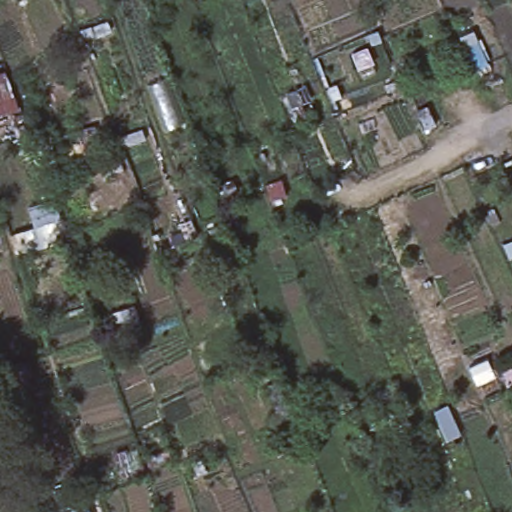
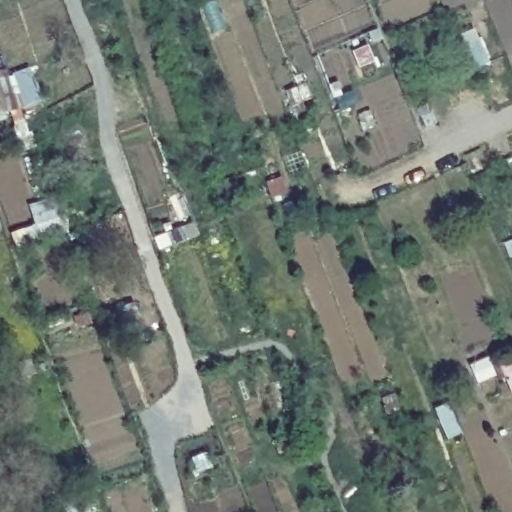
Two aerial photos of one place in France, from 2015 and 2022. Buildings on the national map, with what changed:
unchanged [(85,487),(94,512),(60,512),(53,493),(85,487)]

